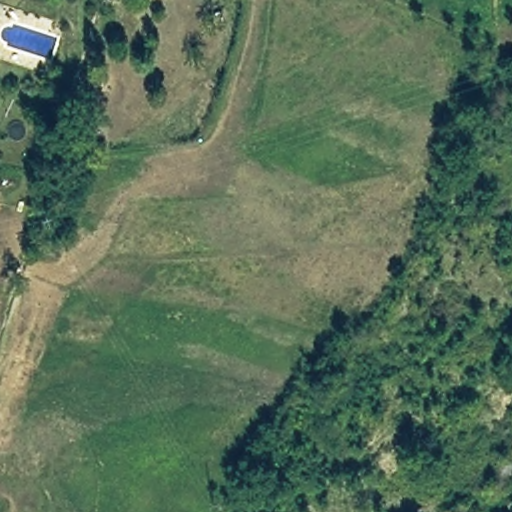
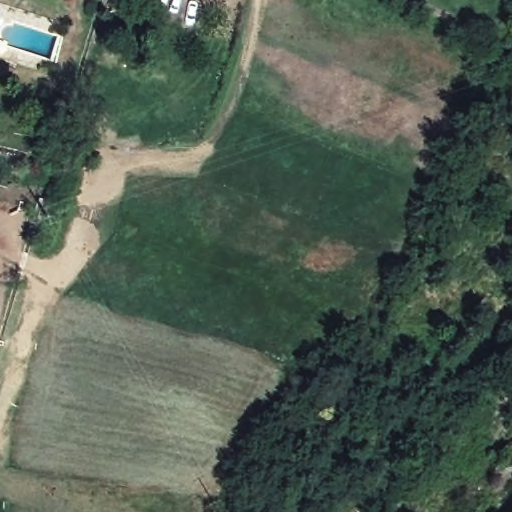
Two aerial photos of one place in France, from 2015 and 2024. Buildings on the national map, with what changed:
unchanged [(484,490),(512,441),(512,481),(502,500),(484,490)]

